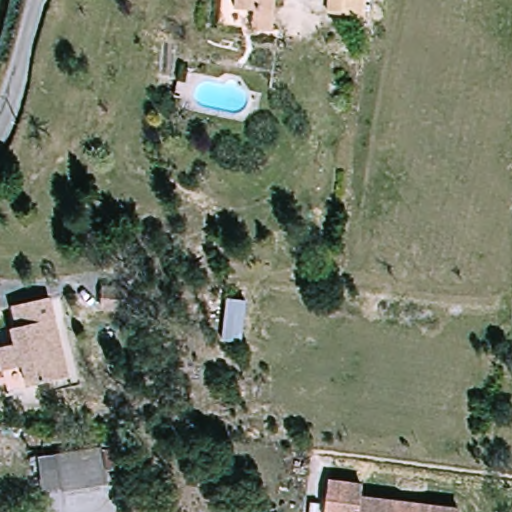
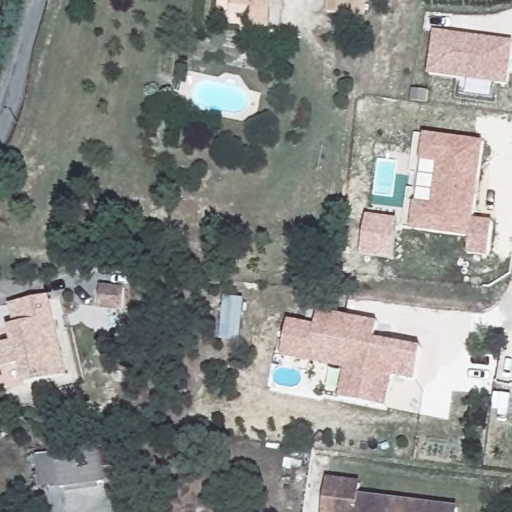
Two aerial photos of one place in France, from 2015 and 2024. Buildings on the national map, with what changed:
unchanged [(279,0),(276,29),(236,25),(238,5),(238,0),(279,0)]
unchanged [(330,0),(366,0),(365,15),(329,12),(330,0)]
new [(429,74),(434,30),(512,42),(512,59),(508,85),(429,74)]
new [(433,203),(438,163),(422,160),(425,133),(485,141),(475,219),(494,222),(489,257),(469,253),(470,238),(412,230),(415,201),(433,203)]
new [(392,258),(361,254),(366,214),(398,219),(392,258)]
unchanged [(123,292),(120,313),(98,310),(101,290),(123,292)]
unchanged [(50,298),(63,357),(68,378),(28,386),(23,366),(10,369),(6,348),(6,346),(15,344),(13,328),(18,327),(13,306),(50,298)]
new [(226,298),(244,300),(241,340),(223,339),(226,298)]
new [(422,348),(416,381),(395,376),(388,408),(341,397),(345,369),(283,356),(289,319),(317,324),(320,311),(380,322),(376,338),(422,348)]
unchanged [(0,357),(0,347),(2,347),(6,346),(10,369),(3,370),(0,357)]
unchanged [(41,459),(58,456),(101,449),(106,484),(63,490),(63,486),(46,489),(41,459)]
unchanged [(361,498),(359,512),(327,512),(331,482),(363,486),(361,498)]
unchanged [(460,512),(359,512),(361,498),(461,511),(460,512)]

